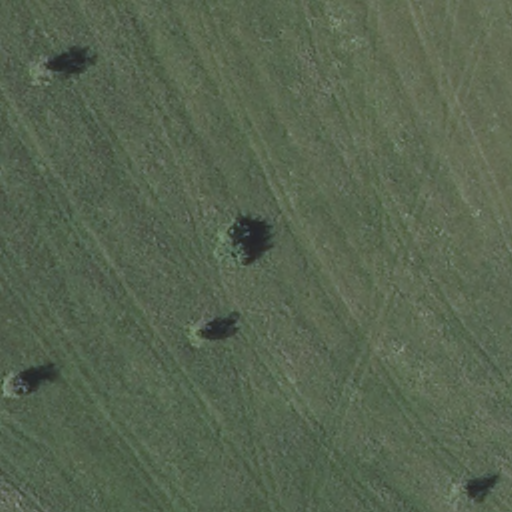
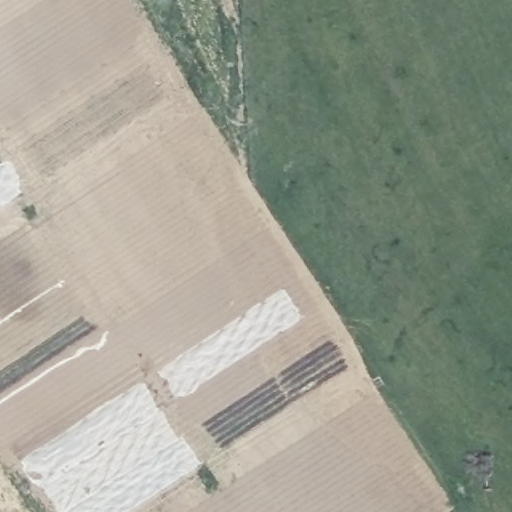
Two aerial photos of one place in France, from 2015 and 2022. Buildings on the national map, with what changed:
[]

